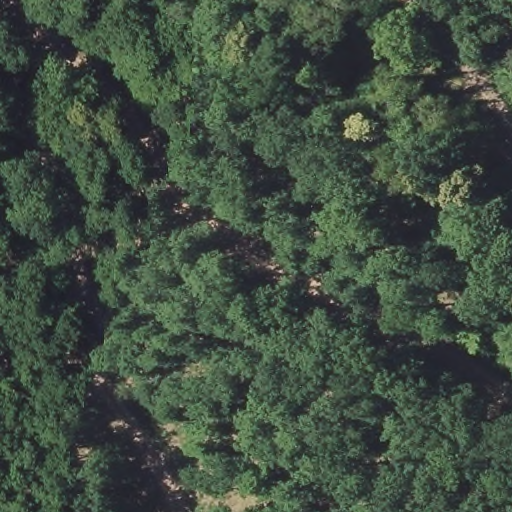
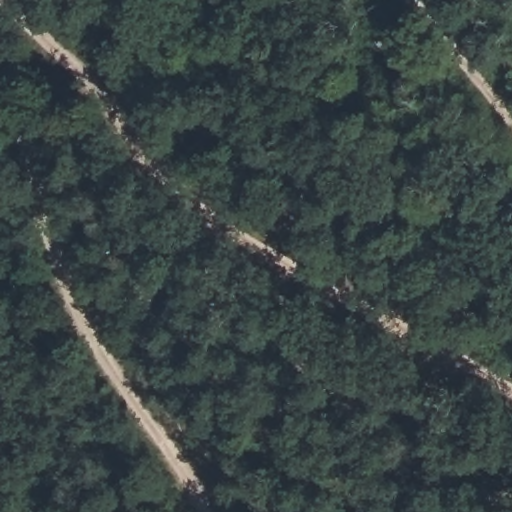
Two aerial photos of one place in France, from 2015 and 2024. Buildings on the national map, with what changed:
unchanged [(325,14),(365,46),(355,60),(315,26),(325,14)]

